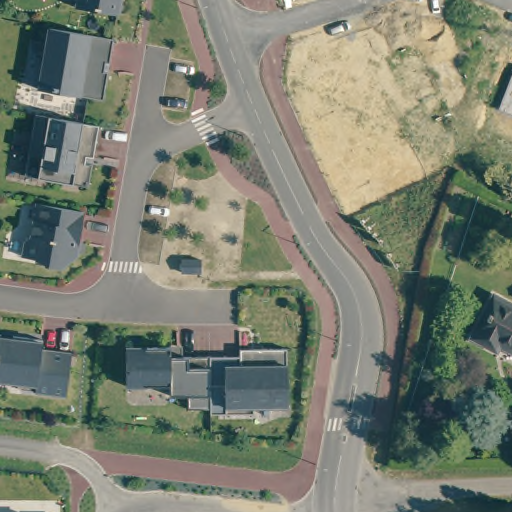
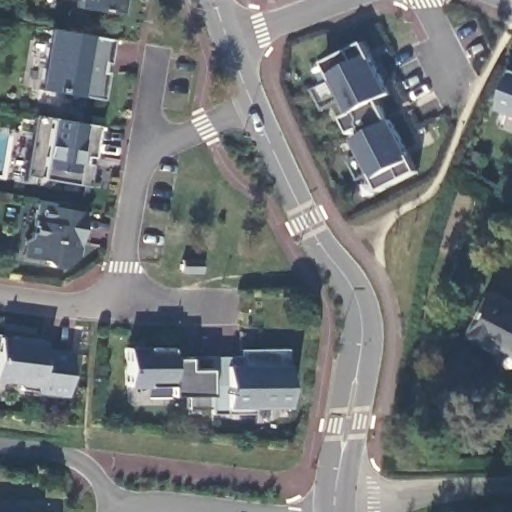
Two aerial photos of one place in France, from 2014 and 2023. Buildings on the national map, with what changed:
unchanged [(76,8),(77,0),(120,0),(117,15),(76,8)]
unchanged [(103,100),(39,89),(49,28),(113,39),(103,100)]
new [(382,190),(352,132),(344,118),(351,115),(325,63),(364,43),(392,93),(378,101),(389,120),(393,119),(419,172),(382,190)]
new [(512,76),(512,115),(498,110),(512,76)]
unchanged [(68,120),(99,126),(93,158),(86,157),(85,163),(92,165),(88,187),(24,176),(35,115),(68,120)]
unchanged [(85,212),(79,246),(76,246),(75,252),(78,253),(77,258),(63,268),(46,265),(42,260),(23,257),(26,241),(32,237),(37,204),(85,212)]
unchanged [(200,260),(200,272),(182,272),(182,260),(200,260)]
unchanged [(499,350),(478,335),(499,295),(512,302),(512,346),(504,342),(499,350)]
unchanged [(1,335),(1,340),(13,342),(13,336),(43,340),(42,350),(72,354),(67,396),(21,390),(15,383),(0,381),(0,335),(1,335)]
unchanged [(210,360),(210,362),(210,407),(189,407),(189,396),(171,396),(171,386),(127,386),(126,348),(171,347),(171,357),(210,357),(210,360)]
unchanged [(241,357),(241,350),(287,349),(287,386),(280,386),(281,407),(254,407),(254,414),(210,415),(210,407),(210,362),(210,360),(210,357),(241,357)]

